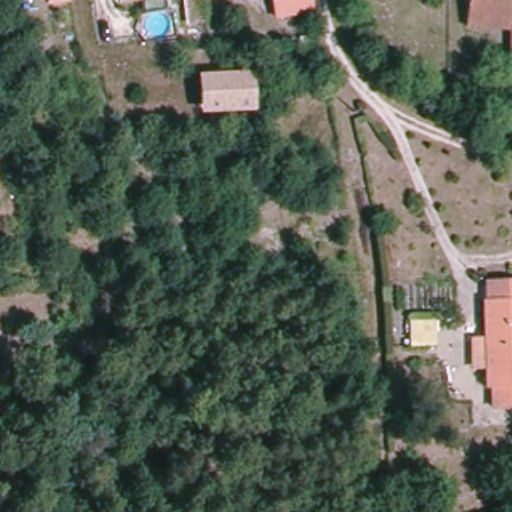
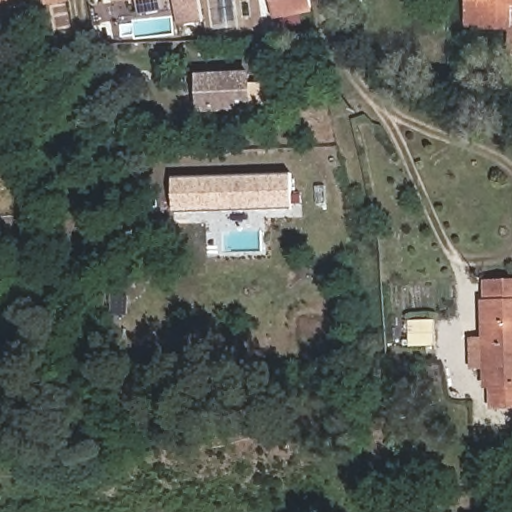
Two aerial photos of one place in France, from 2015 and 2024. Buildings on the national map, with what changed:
new [(50,2),(50,0),(60,0),(50,2)]
unchanged [(120,5),(119,0),(158,0),(120,5)]
unchanged [(188,3),(202,0),(207,28),(194,30),(188,3)]
unchanged [(314,13),(276,18),(273,0),(311,0),(314,13)]
unchanged [(512,30),(472,28),(473,0),(512,0),(512,30)]
unchanged [(251,70),(254,109),(201,113),(198,74),(251,70)]
new [(175,212),(174,179),(292,175),(293,208),(175,212)]
unchanged [(512,403),(490,403),(491,386),(486,385),(486,366),(470,366),(471,332),(486,332),(485,299),(512,299),(512,403)]
unchanged [(439,317),(437,345),(415,345),(415,316),(439,317)]

